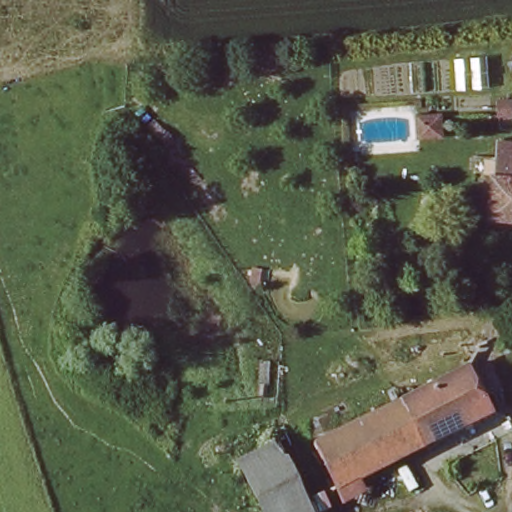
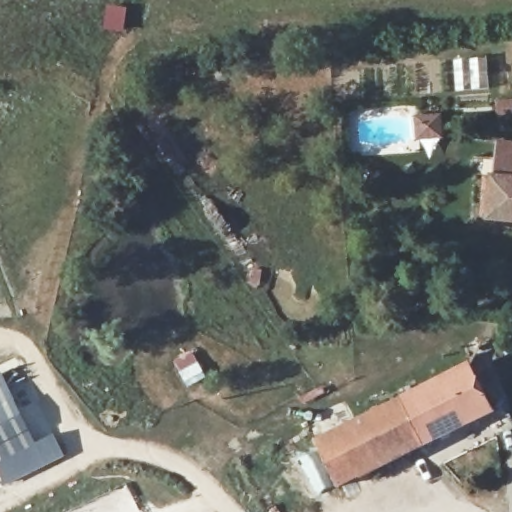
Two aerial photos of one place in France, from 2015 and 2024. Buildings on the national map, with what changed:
unchanged [(491,172),(497,173),(498,141),(512,141),(512,211),(488,210),(491,172)]
unchanged [(361,479),(363,494),(347,498),(316,435),(466,360),(495,412),(361,479)]
new [(3,371),(36,443),(54,435),(65,456),(5,486),(0,477),(0,373),(3,371)]
demolished [(277,438),(311,512),(262,512),(237,460),(277,438)]

